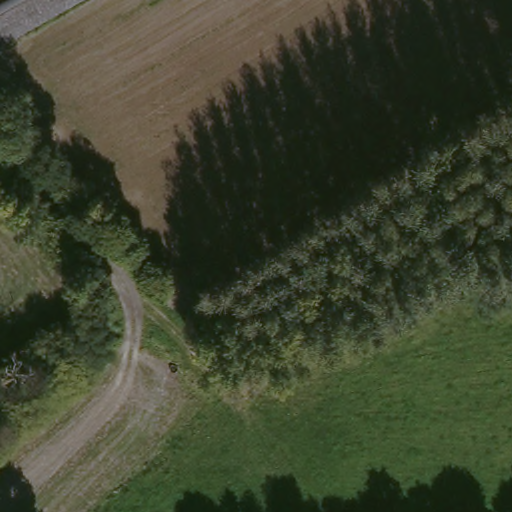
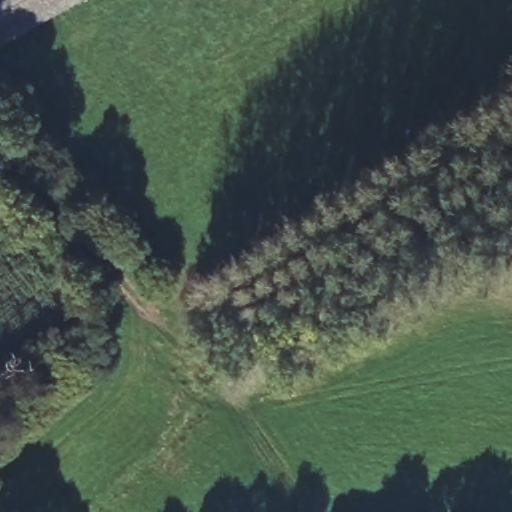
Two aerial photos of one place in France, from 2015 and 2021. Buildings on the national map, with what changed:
unchanged [(0,0),(91,0),(0,49),(0,0)]

